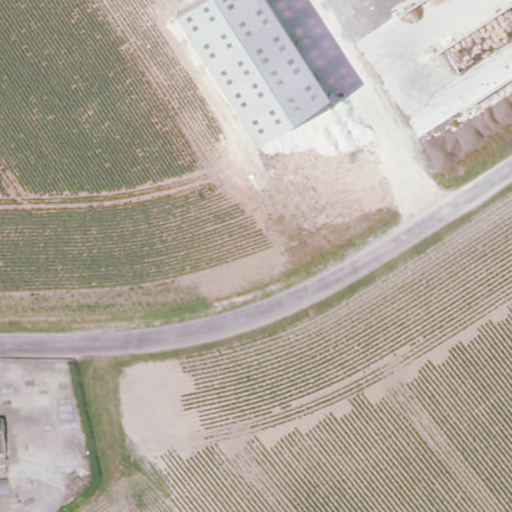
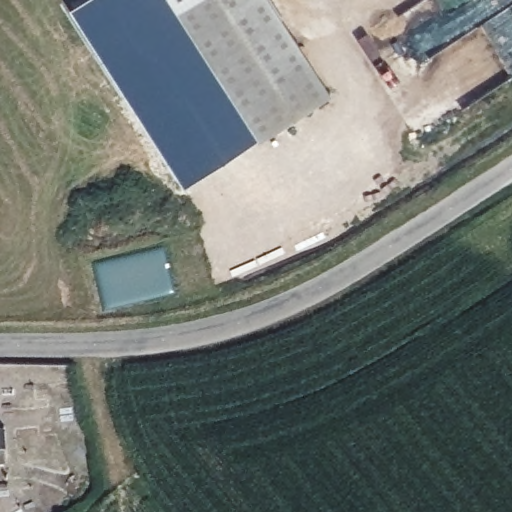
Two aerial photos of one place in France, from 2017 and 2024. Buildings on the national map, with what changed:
new [(259,138),(186,185),(70,7),(82,0),(195,0),(178,11),(259,138)]
unchanged [(272,0),(331,94),(259,138),(178,11),(195,0),(272,0)]
unchanged [(4,423),(3,456),(0,456),(0,423),(4,423)]

